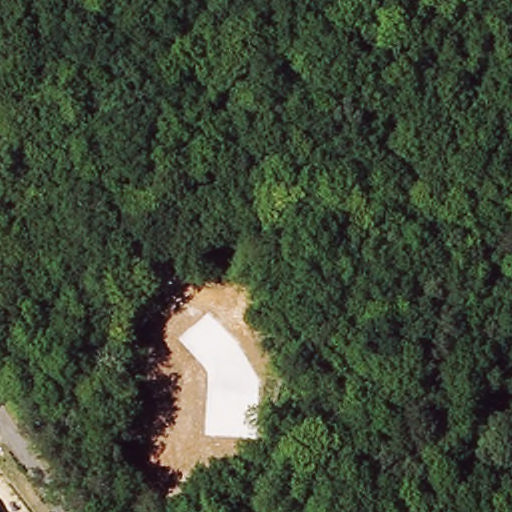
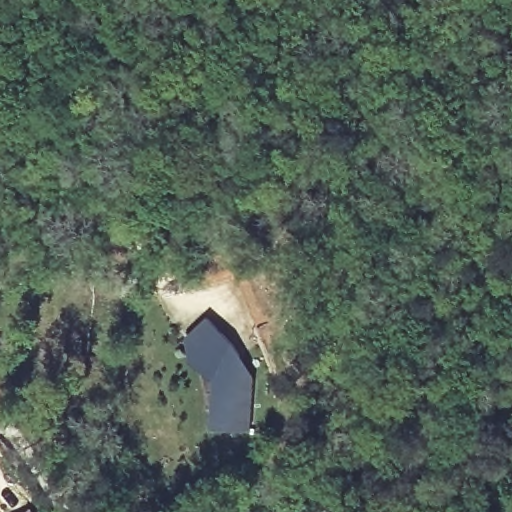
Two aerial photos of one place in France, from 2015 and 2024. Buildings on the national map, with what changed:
new [(200,323),(226,348),(233,360),(229,365),(247,383),(245,436),(207,434),(209,382),(205,368),(180,343),(200,323)]

